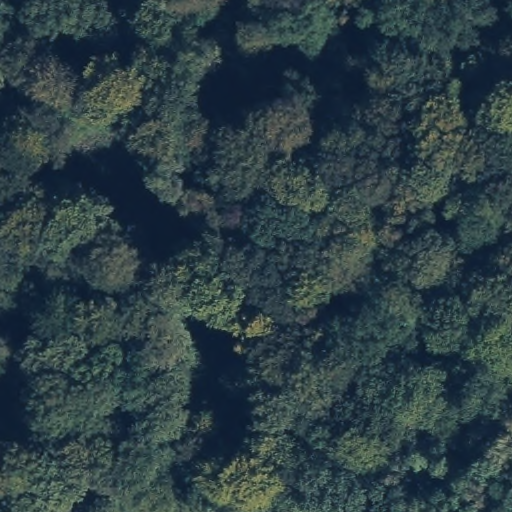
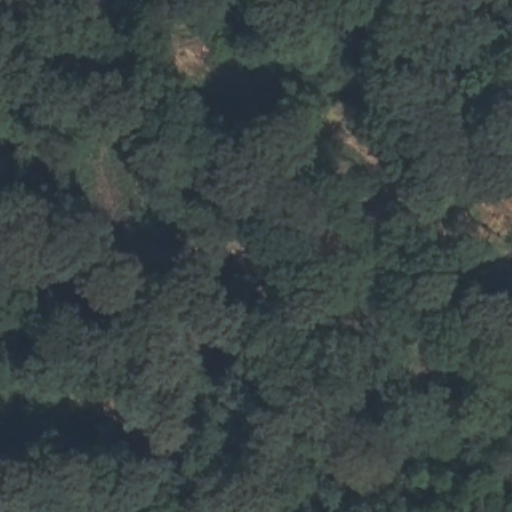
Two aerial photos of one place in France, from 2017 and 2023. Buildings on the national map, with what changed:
[]

